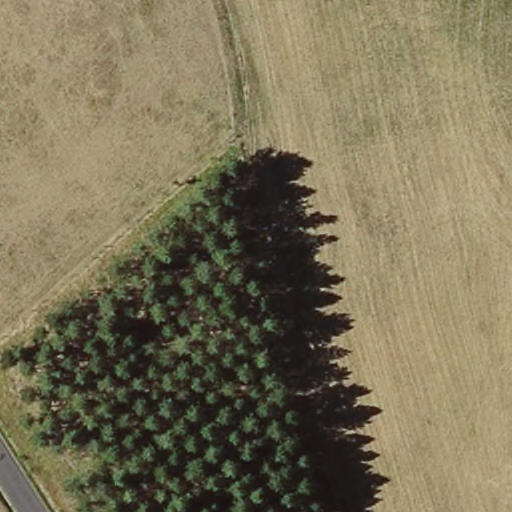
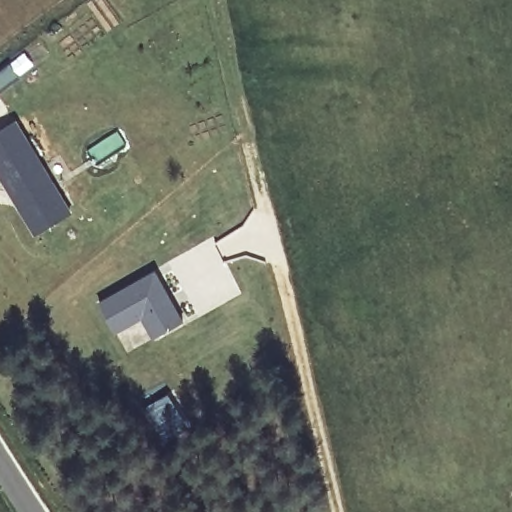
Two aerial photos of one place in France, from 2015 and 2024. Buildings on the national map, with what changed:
new [(36,235),(0,177),(0,131),(17,120),(73,212),(36,235)]
new [(182,322),(153,339),(141,319),(115,334),(98,304),(153,271),(182,322)]

